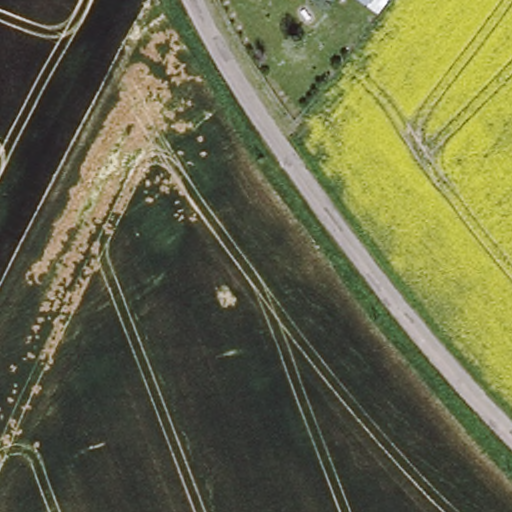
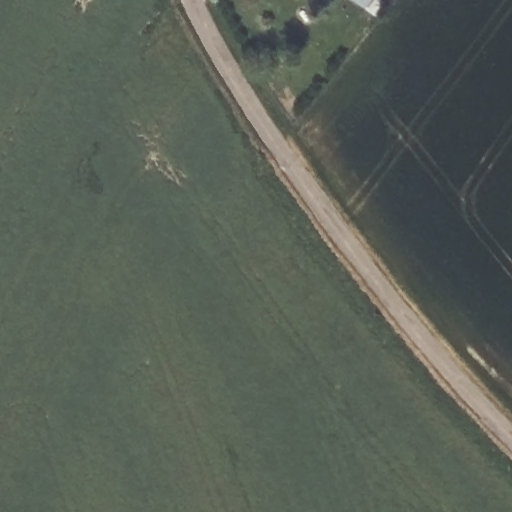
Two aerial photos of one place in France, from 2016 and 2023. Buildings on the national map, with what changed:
unchanged [(283,1),(282,0),(285,0),(283,1)]
unchanged [(289,3),(287,0),(293,0),(289,3)]
unchanged [(357,0),(390,0),(379,14),(357,0)]

